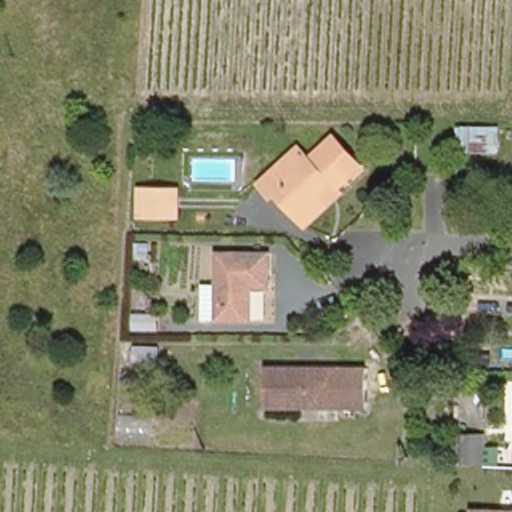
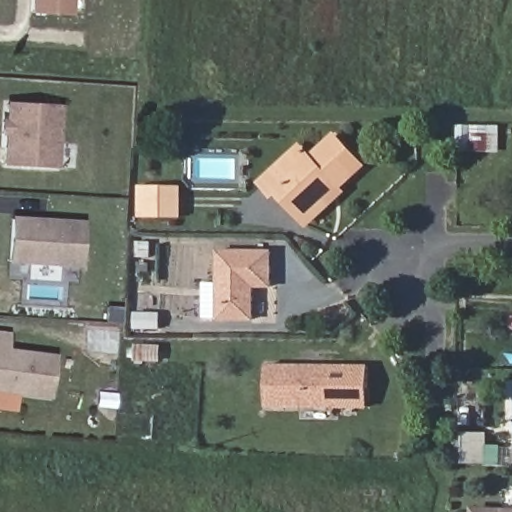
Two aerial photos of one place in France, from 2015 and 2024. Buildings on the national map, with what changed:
new [(72,17),(31,13),(32,0),(74,0),(72,17)]
new [(5,137),(1,137),(1,120),(5,120),(6,103),(61,105),(59,168),(3,164),(5,137)]
unchanged [(501,154),(470,155),(470,125),(498,126),(501,154)]
unchanged [(310,219),(305,214),(280,188),(273,193),(262,180),(288,158),(298,168),(337,135),(364,163),(339,185),(343,189),(310,219)]
unchanged [(180,215),(155,214),(140,214),(141,184),(155,185),(180,186),(180,215)]
new [(86,221),(83,268),(7,264),(11,217),(86,221)]
unchanged [(268,252),(268,288),(251,287),(249,318),(214,317),(216,251),(268,252)]
unchanged [(130,302),(152,303),(151,318),(130,317),(130,302)]
new [(9,349),(56,355),(51,400),(0,393),(0,331),(10,332),(9,349)]
unchanged [(134,350),(159,351),(158,365),(133,364),(134,350)]
unchanged [(370,369),(368,411),(270,407),(271,365),(370,369)]
unchanged [(442,422),(473,422),(473,456),(445,454),(442,454),(442,422)]

